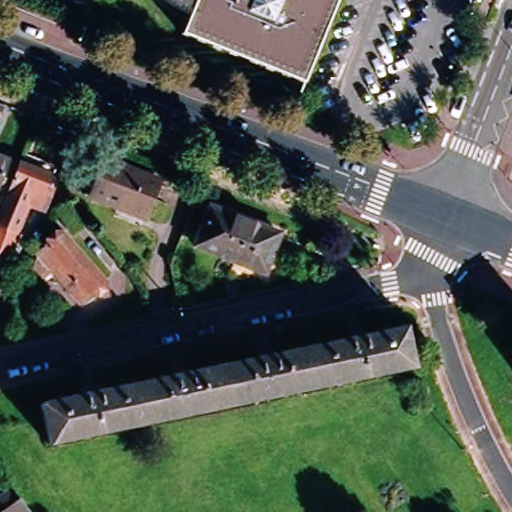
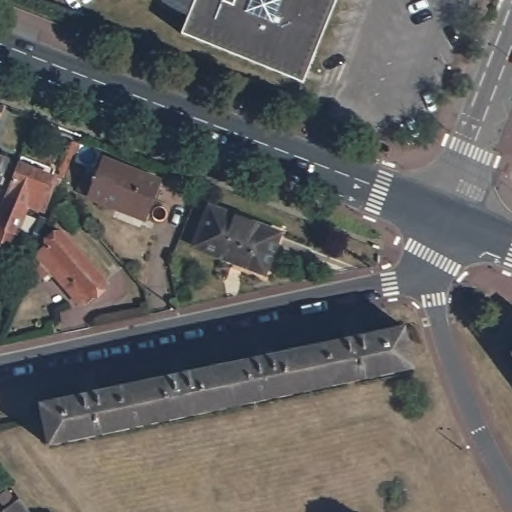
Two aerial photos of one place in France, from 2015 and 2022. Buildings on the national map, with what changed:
unchanged [(172,11),(167,8),(161,4),(157,0),(198,0),(190,20),(177,13),(172,11)]
unchanged [(341,0),(305,87),(183,38),(190,20),(198,0),(341,0)]
unchanged [(0,183),(0,182),(0,157),(5,159),(4,161),(8,163),(0,183)]
unchanged [(147,219),(90,197),(105,159),(161,182),(147,219)]
unchanged [(56,175),(44,208),(31,204),(17,240),(0,234),(0,216),(5,198),(20,161),(56,175)]
unchanged [(51,213),(69,198),(89,226),(72,235),(51,213)]
unchanged [(266,275),(198,248),(214,208),(282,236),(266,275)]
unchanged [(36,256),(25,252),(33,228),(45,233),(36,256)]
unchanged [(80,315),(38,266),(64,244),(106,292),(80,315)]
unchanged [(51,450),(43,411),(86,401),(85,395),(96,393),(97,399),(175,382),(174,375),(186,372),(188,379),(260,363),(259,357),(271,354),(272,361),(351,343),(350,337),(361,335),(362,342),(406,332),(414,371),(51,450)]
unchanged [(7,508),(2,512),(0,508),(0,498),(12,489),(20,499),(29,512),(10,512),(7,508)]

